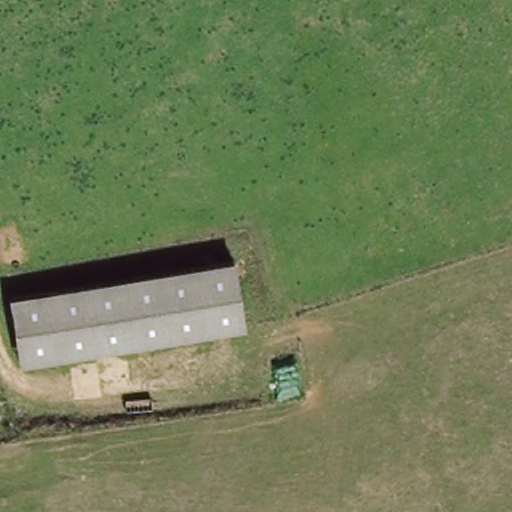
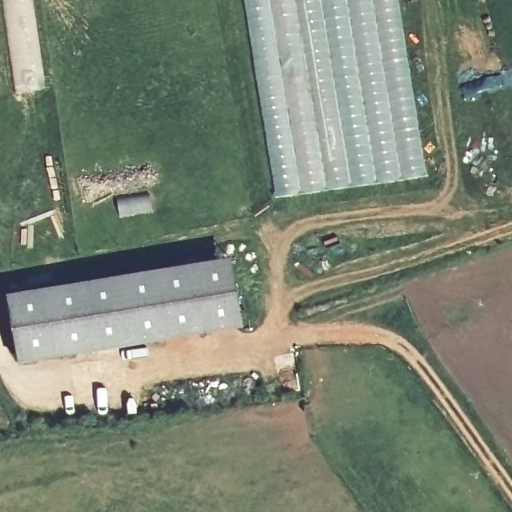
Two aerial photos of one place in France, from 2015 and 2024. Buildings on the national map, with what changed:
new [(426,176),(277,196),(245,0),(398,0),(426,176)]
unchanged [(10,291),(238,260),(247,328),(20,362),(10,291)]
new [(1,411),(0,411),(0,407),(1,411)]

